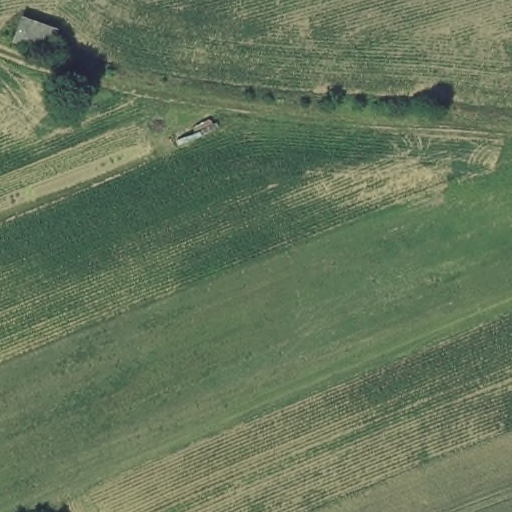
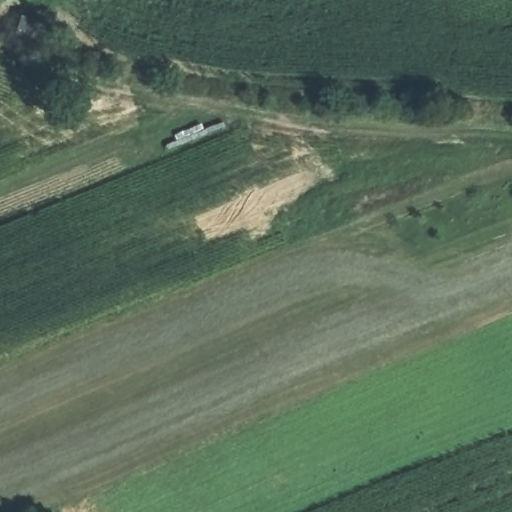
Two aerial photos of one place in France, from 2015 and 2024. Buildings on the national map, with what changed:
unchanged [(26,12),(60,26),(52,53),(15,42),(26,12)]

